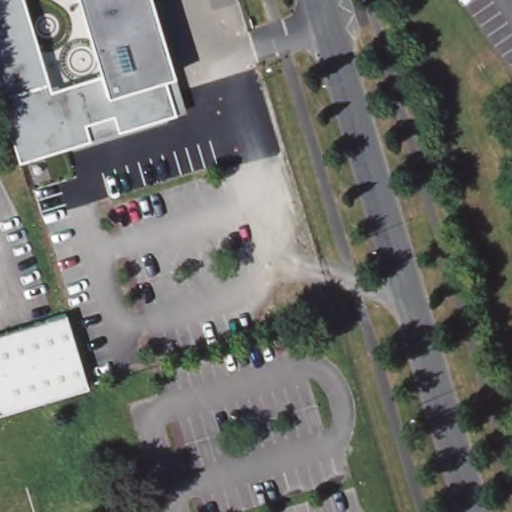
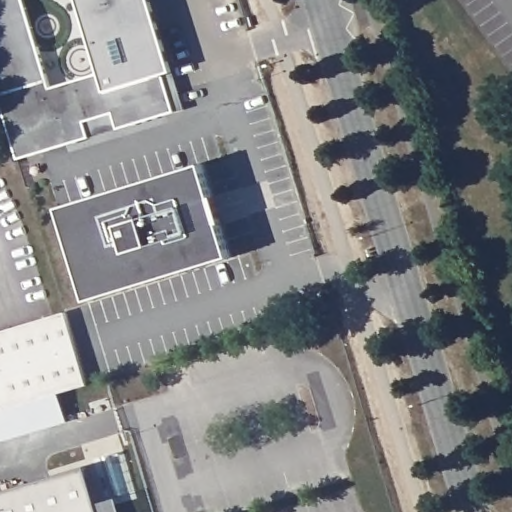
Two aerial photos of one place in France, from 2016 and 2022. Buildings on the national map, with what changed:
unchanged [(18,159),(0,101),(0,0),(23,0),(49,87),(99,69),(79,0),(152,0),(174,72),(165,75),(174,112),(18,159)]
new [(59,207),(203,162),(232,256),(88,300),(59,207)]
unchanged [(62,310),(85,384),(85,385),(77,386),(4,409),(0,410),(0,328),(62,310)]
new [(101,512),(0,512),(0,493),(87,467),(101,512)]
new [(91,502),(113,496),(118,512),(95,512),(91,502)]

